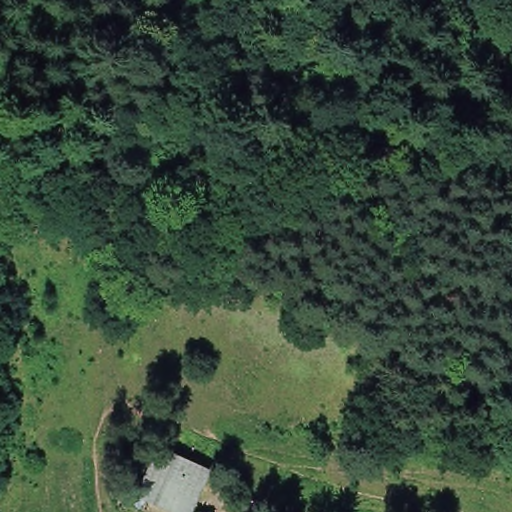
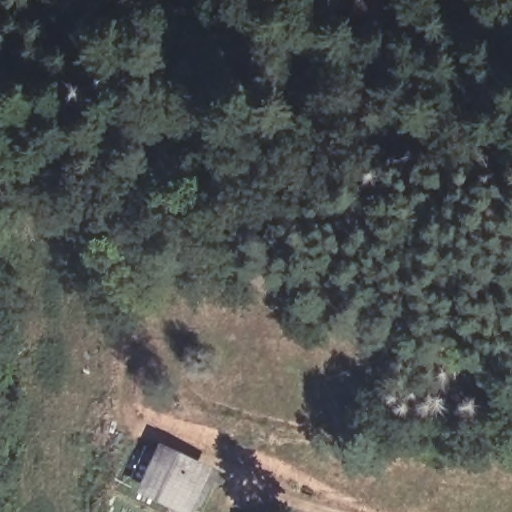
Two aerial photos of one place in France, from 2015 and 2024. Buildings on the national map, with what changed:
unchanged [(209,469),(192,506),(160,492),(150,487),(167,450),(183,457),(209,469)]

